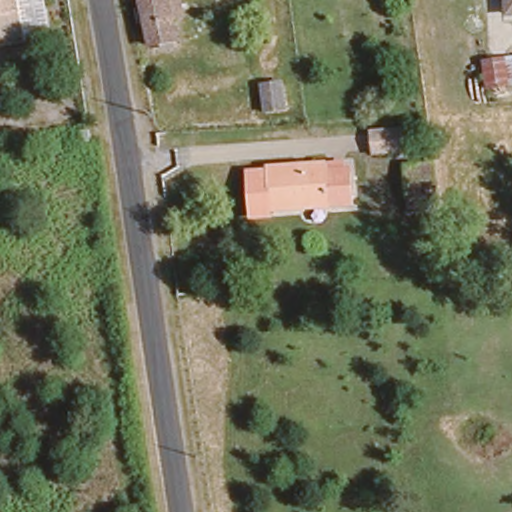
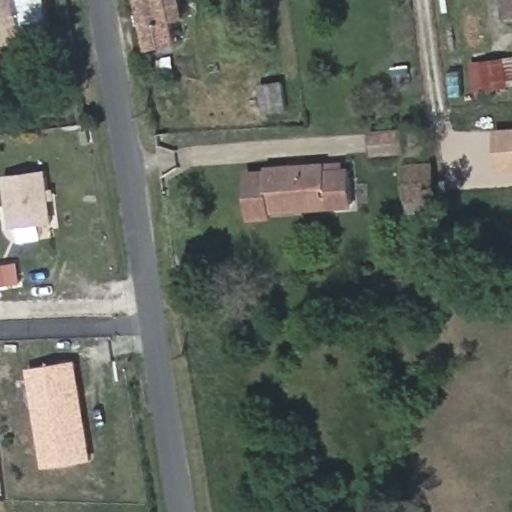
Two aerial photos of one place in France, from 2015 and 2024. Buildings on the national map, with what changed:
unchanged [(0,42),(0,0),(18,0),(23,38),(0,42)]
unchanged [(168,0),(171,14),(159,17),(164,37),(145,41),(136,0),(155,0),(157,0),(168,0)]
unchanged [(499,10),(498,0),(512,0),(512,8),(499,10)]
unchanged [(480,82),(477,56),(512,53),(512,80),(480,82)]
unchanged [(285,104),(263,108),(260,82),(282,79),(285,104)]
unchanged [(402,149),(372,152),(370,132),(399,128),(402,149)]
new [(504,172),(501,134),(512,134),(512,172),(504,172)]
unchanged [(349,202),(265,210),(266,217),(248,219),(244,175),(262,174),(262,171),(322,165),(338,163),(339,171),(346,170),(349,202)]
unchanged [(433,209),(410,212),(403,169),(426,165),(433,209)]
new [(47,169),(53,222),(11,226),(4,175),(47,169)]
new [(22,283),(0,287),(0,265),(19,263),(22,283)]
new [(92,459),(44,466),(28,367),(77,360),(92,459)]

